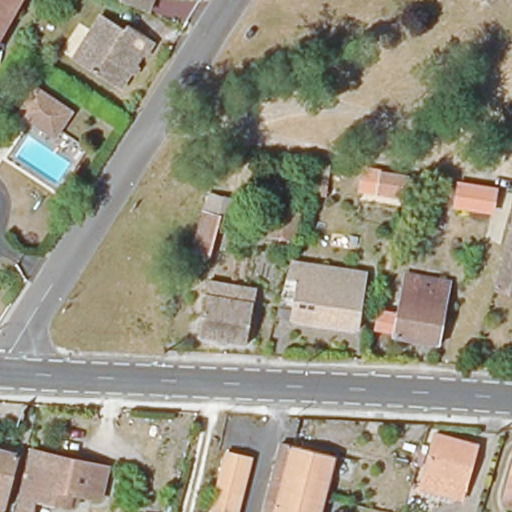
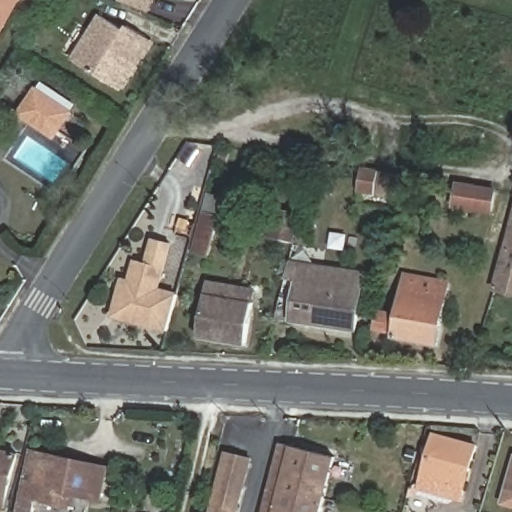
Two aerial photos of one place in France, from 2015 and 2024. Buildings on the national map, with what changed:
unchanged [(0,44),(0,0),(23,0),(0,44)]
unchanged [(125,0),(154,0),(149,13),(124,3),(125,0)]
unchanged [(131,37),(133,33),(156,47),(126,97),(80,68),(66,60),(84,30),(97,39),(107,23),(131,37)]
unchanged [(39,88),(72,111),(57,134),(24,111),(39,88)]
unchanged [(324,184),(333,186),(332,197),(311,194),(317,162),(327,164),(324,184)]
unchanged [(406,202),(380,196),(381,186),(366,183),(367,175),(409,182),(406,202)]
unchanged [(228,226),(219,222),(213,253),(192,247),(206,181),(232,187),(228,226)]
unchanged [(491,214),(455,207),(458,187),(495,194),(491,214)]
unchanged [(294,248),(267,242),(273,211),(301,217),(294,248)]
unchanged [(501,277),(512,234),(512,280),(501,277)]
new [(161,287),(179,292),(167,332),(112,318),(122,277),(130,279),(135,259),(147,262),(152,238),(174,242),(161,287)]
unchanged [(362,273),(354,331),(274,320),(280,291),(287,262),(362,273)]
unchanged [(436,348),(393,341),(406,277),(448,285),(436,348)]
unchanged [(196,336),(205,283),(232,287),(254,290),(252,301),(246,344),(196,336)]
unchanged [(461,496),(421,486),(435,434),(476,446),(461,496)]
unchanged [(264,512),(282,441),(336,455),(321,512),(264,512)]
unchanged [(5,507),(8,508),(7,512),(0,512),(0,449),(16,452),(5,507)]
unchanged [(102,498),(76,494),(72,508),(37,500),(35,512),(16,512),(29,452),(82,462),(107,466),(102,498)]
unchanged [(208,512),(224,453),(248,459),(234,512),(208,512)]
unchanged [(505,507),(512,484),(512,510),(505,507)]

